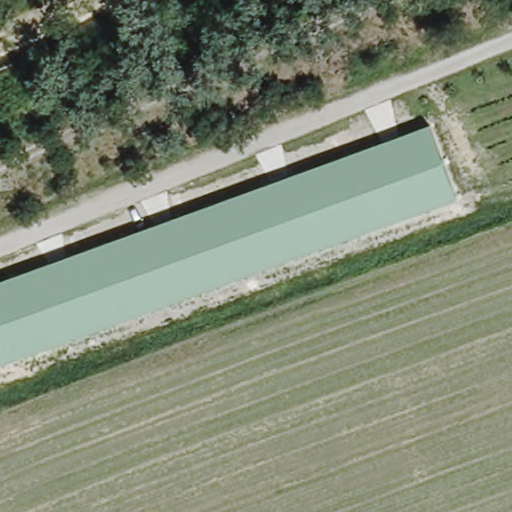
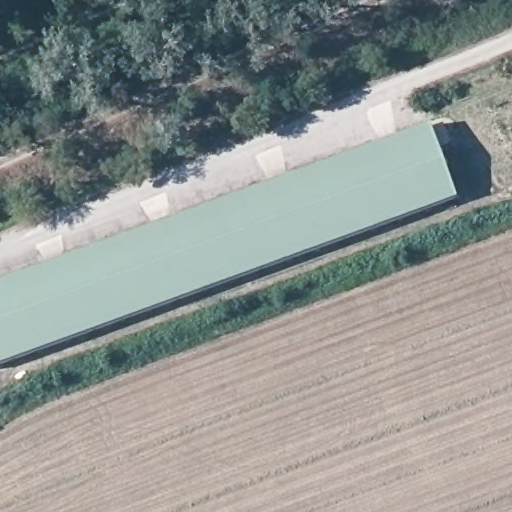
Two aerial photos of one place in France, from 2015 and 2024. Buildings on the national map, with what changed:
unchanged [(456,197),(0,364),(0,283),(430,125),(456,197)]

